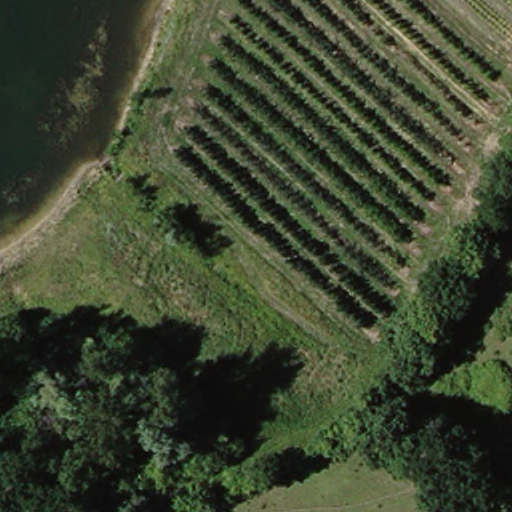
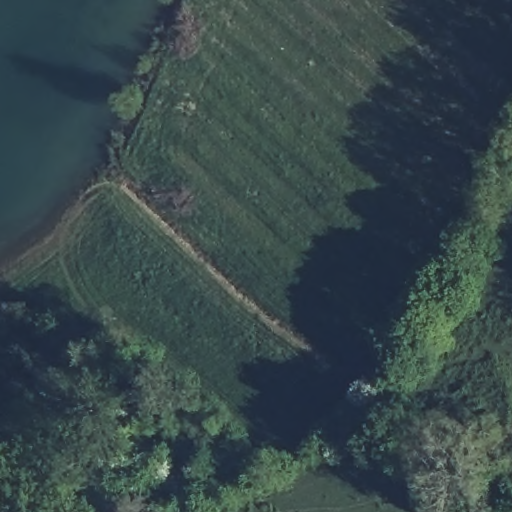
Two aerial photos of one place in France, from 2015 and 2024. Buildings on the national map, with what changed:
unchanged [(23,512),(0,512),(0,491),(12,485),(23,512)]

